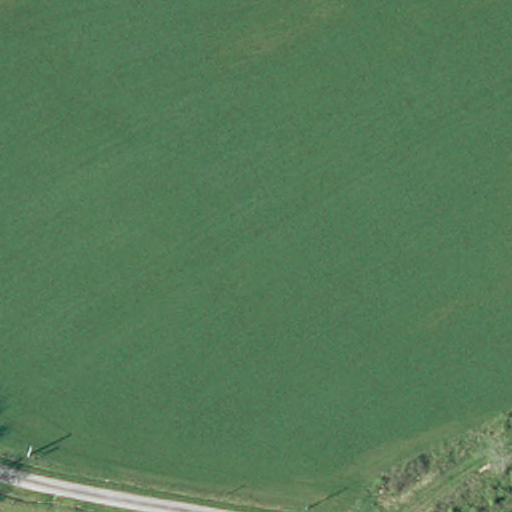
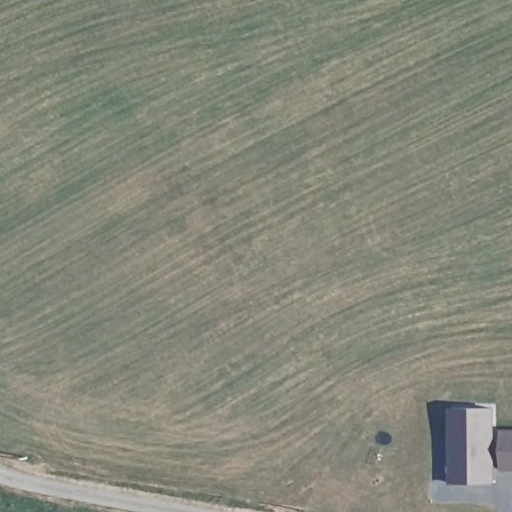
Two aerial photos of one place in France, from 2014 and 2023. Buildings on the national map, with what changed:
new [(501,467),(497,467),(497,481),(450,482),(449,406),(496,406),(496,446),(502,446),(502,429),(512,429),(512,469),(501,469),(501,467)]

